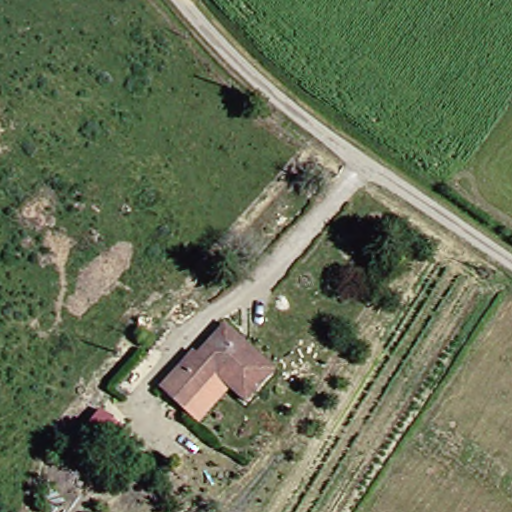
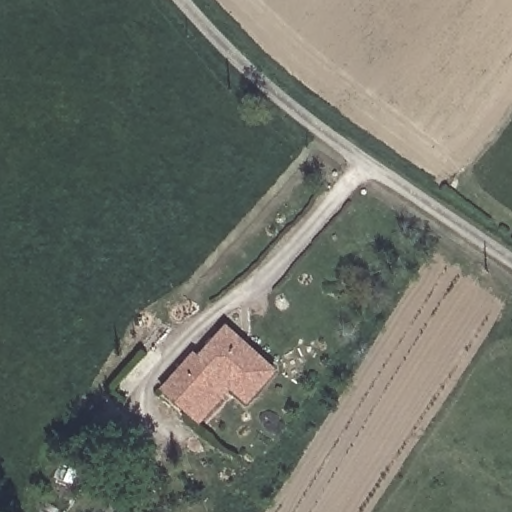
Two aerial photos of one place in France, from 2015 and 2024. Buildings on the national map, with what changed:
unchanged [(220,370),(188,408),(161,388),(195,348),(200,352),(229,323),(277,366),(250,394),(220,370)]
unchanged [(105,410),(134,434),(101,469),(75,446),(105,410)]

